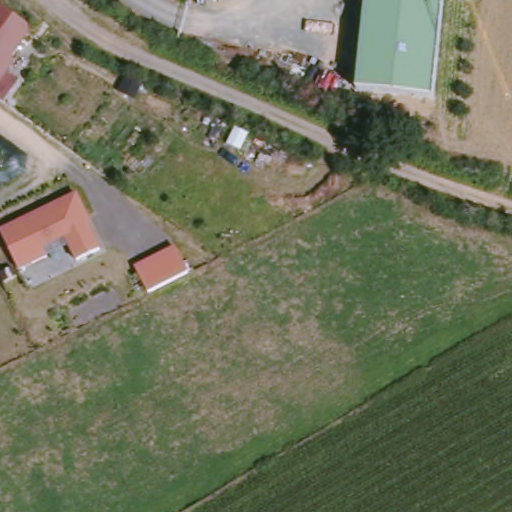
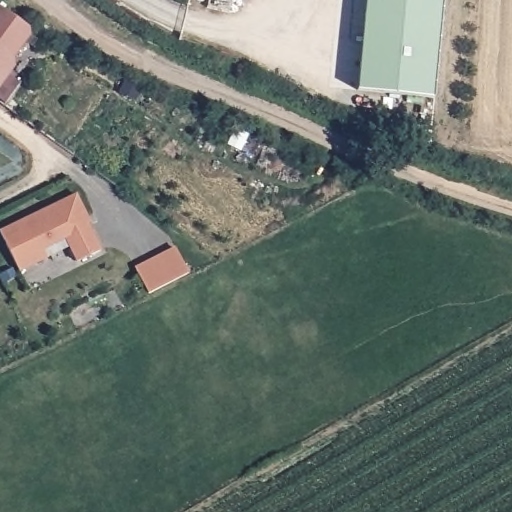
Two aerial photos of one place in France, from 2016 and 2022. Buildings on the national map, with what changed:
unchanged [(356,89),(365,0),(442,0),(432,98),(356,89)]
unchanged [(0,9),(33,35),(13,63),(17,68),(11,76),(20,86),(6,106),(0,102),(0,9)]
unchanged [(0,233),(79,197),(93,226),(90,229),(102,254),(78,265),(67,242),(43,253),(48,263),(20,275),(0,233)]
unchanged [(135,270),(176,249),(190,277),(150,298),(135,270)]

